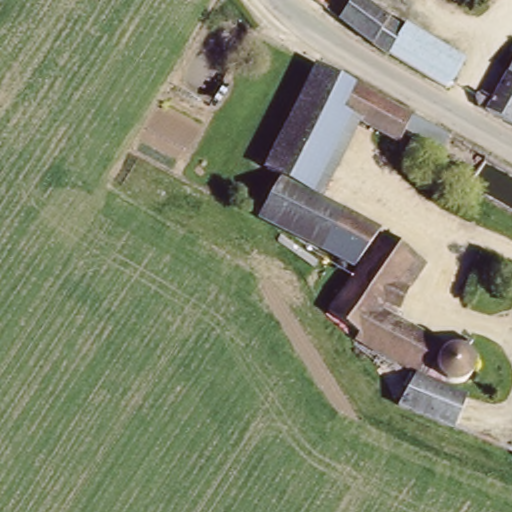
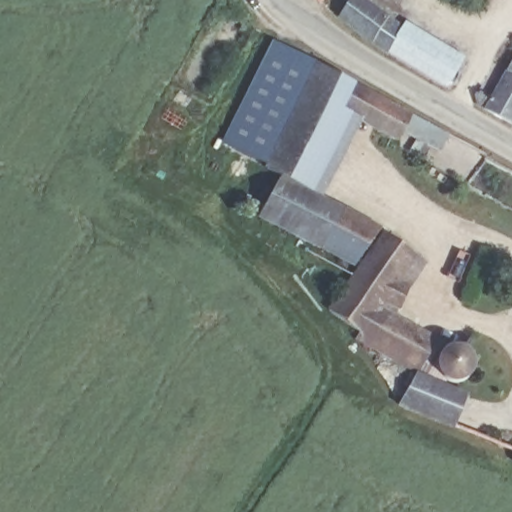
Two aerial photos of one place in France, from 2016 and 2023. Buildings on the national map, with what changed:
unchanged [(370,0),(407,28),(392,52),(343,17),(356,0),(370,0)]
unchanged [(407,28),(410,24),(467,57),(450,86),(392,52),(407,28)]
new [(220,143),(272,42),(320,61),(272,157),(270,167),(220,143)]
unchanged [(272,157),(320,61),(357,81),(343,107),(365,119),(327,197),(284,175),(270,167),(272,157)]
unchanged [(481,99),(483,96),(478,90),(483,84),(497,93),(512,66),(512,115),(482,100),(481,99)]
unchanged [(343,107),(357,81),(454,132),(447,147),(410,127),(405,137),(397,134),(397,136),(365,119),(343,107)]
unchanged [(284,175),(327,197),(385,227),(357,265),(261,215),(284,175)]
unchanged [(362,267),(390,231),(432,262),(413,286),(406,307),(402,306),(400,314),(442,338),(423,373),(472,392),(458,427),(403,405),(420,372),(357,338),(362,331),(331,309),(362,267)]
unchanged [(454,346),(458,345),(467,346),(473,336),(478,339),(472,348),(476,353),(479,360),(479,370),(475,377),(470,381),(463,383),(455,383),(448,380),(443,374),(441,368),(440,362),(442,357),(447,350),(454,346)]

